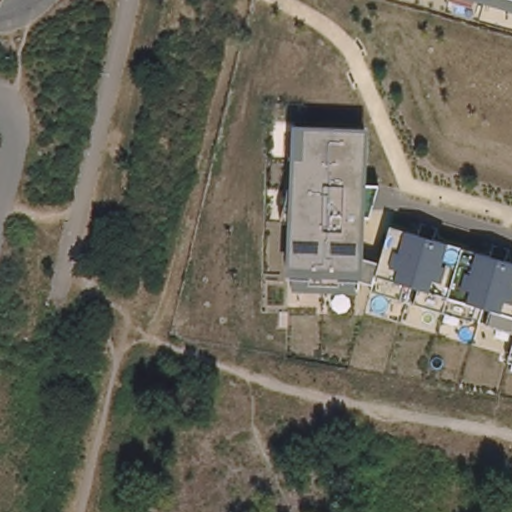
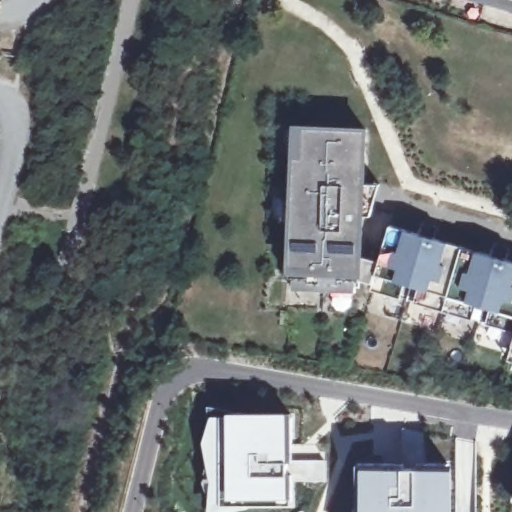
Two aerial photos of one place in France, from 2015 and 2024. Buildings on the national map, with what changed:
unchanged [(512,13),(465,0),(512,0),(512,13)]
unchanged [(377,284),(355,284),(355,292),(292,293),(295,130),(367,132),(368,185),(383,186),(367,226),(364,256),(384,264),(394,231),(512,262),(512,332),(375,293),(377,284)]
unchanged [(512,334),(512,365),(505,362),(512,334)]
new [(234,415),(287,416),(291,497),(291,503),(220,506),(220,416),(234,415)]
new [(454,471),(455,512),(358,512),(359,509),(362,462),(456,459),(454,471)]

